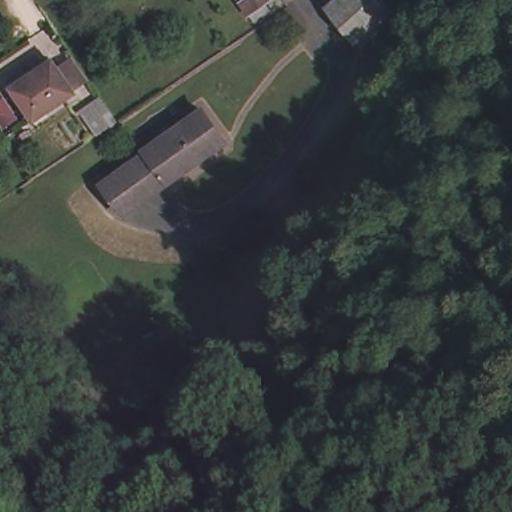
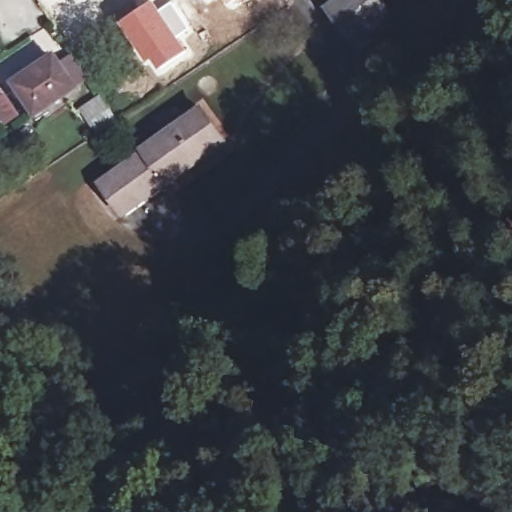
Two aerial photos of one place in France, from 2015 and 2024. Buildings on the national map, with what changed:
new [(159,7),(170,0),(172,0),(191,28),(181,36),(189,49),(156,73),(119,23),(154,0),(159,7)]
unchanged [(241,0),(277,0),(253,18),(241,0)]
unchanged [(351,0),(380,0),(390,13),(375,26),(356,44),(334,15),(346,5),(351,0)]
unchanged [(49,109),(52,114),(39,123),(14,86),(54,58),(60,68),(74,58),(89,79),(75,88),(76,90),(49,109)]
unchanged [(0,106),(8,99),(20,116),(8,124),(0,113),(0,106)]
unchanged [(120,119),(121,121),(111,128),(107,130),(100,135),(86,114),(106,99),(120,119)]
unchanged [(128,217),(108,187),(151,155),(149,152),(207,110),(229,144),(128,217)]

